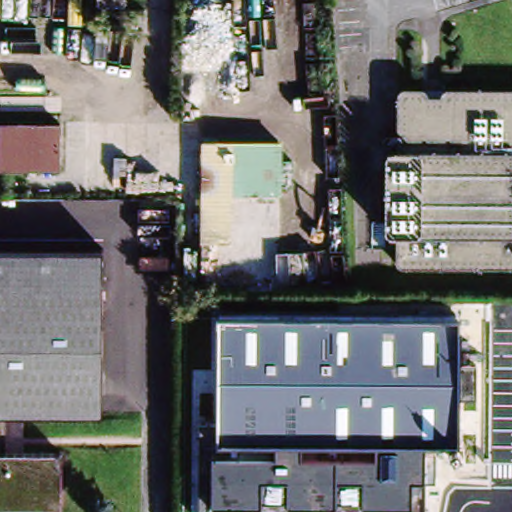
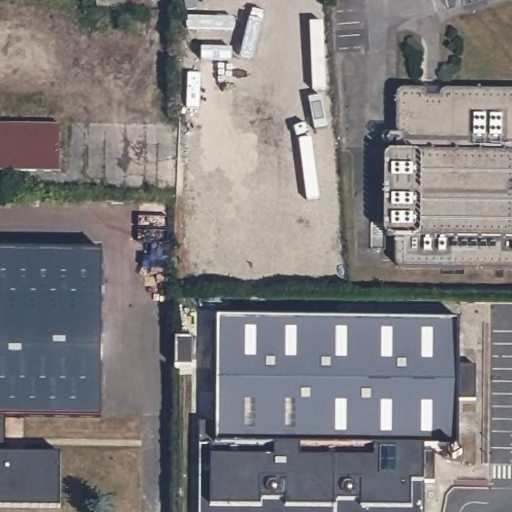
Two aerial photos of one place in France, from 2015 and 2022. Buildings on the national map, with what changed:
unchanged [(392,93),(392,91),(394,90),(396,90),(412,90),(415,90),(417,92),(419,93),(420,95),(420,98),(434,98),(434,96),(434,94),(435,92),(438,90),(442,89),(512,90),(512,270),(397,269),(394,269),(392,267),(390,265),(390,262),(390,238),(386,238),(384,237),(381,235),(379,233),(379,230),(379,160),(380,157),(382,155),(384,154),(387,153),(391,153),(392,96),(392,93)]
unchanged [(60,122),(59,169),(0,169),(0,122),(60,122)]
demolished [(277,141),(277,192),(229,191),(228,242),(203,242),(204,140),(277,141)]
unchanged [(92,280),(92,416),(0,415),(0,449),(62,449),(62,502),(0,502),(0,280),(92,280)]
unchanged [(216,420),(217,318),(460,322),(460,365),(477,366),(475,400),(459,397),(459,446),(425,446),(425,512),(199,512),(200,424),(216,420)]

